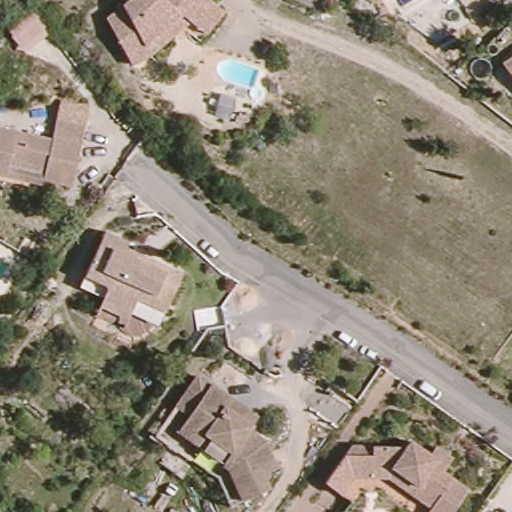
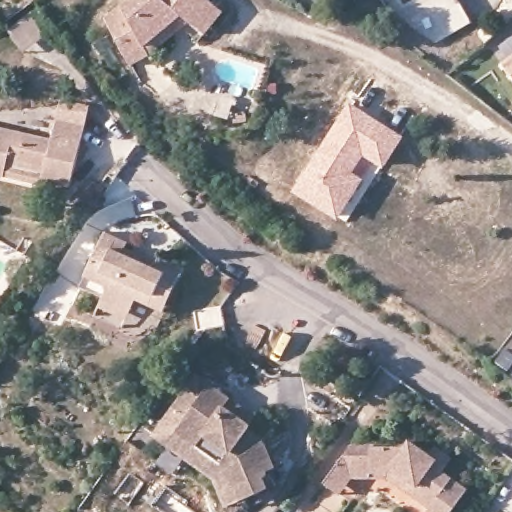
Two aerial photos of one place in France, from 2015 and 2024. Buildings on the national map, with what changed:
unchanged [(143,49),(125,61),(98,17),(122,0),(208,0),(209,1),(220,11),(202,34),(190,24),(186,21),(180,26),(143,49)]
unchanged [(419,0),(459,0),(468,15),(433,34),(401,10),(419,0)]
new [(29,10),(48,29),(25,52),(5,32),(29,10)]
unchanged [(512,76),(501,62),(512,55),(512,76)]
unchanged [(3,182),(0,181),(0,133),(50,143),(55,121),(60,97),(90,102),(85,127),(78,157),(75,171),(72,186),(43,181),(41,189),(3,182)]
new [(347,101),(404,136),(383,169),(363,157),(354,172),(364,179),(337,219),(291,190),(347,101)]
unchanged [(105,297),(108,289),(105,282),(85,273),(105,230),(127,240),(125,246),(133,250),(147,257),(158,262),(176,271),(165,294),(157,291),(150,305),(138,298),(132,310),(129,317),(101,304),(105,297)]
unchanged [(262,447),(270,470),(258,473),(263,491),(237,498),(227,473),(175,435),(185,419),(173,411),(188,392),(198,400),(207,388),(227,402),(253,421),(247,429),(245,433),(262,447)]
unchanged [(430,512),(427,510),(431,504),(412,491),(390,475),(375,475),(353,475),(340,493),(325,482),(340,462),(350,447),(405,447),(408,442),(427,456),(433,447),(449,458),(443,467),(440,472),(465,490),(450,512),(430,512)]

